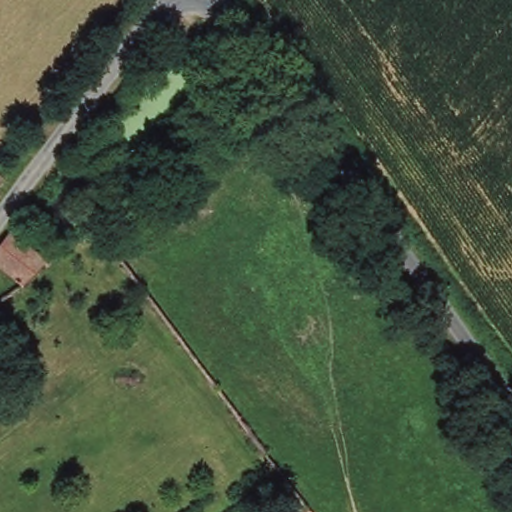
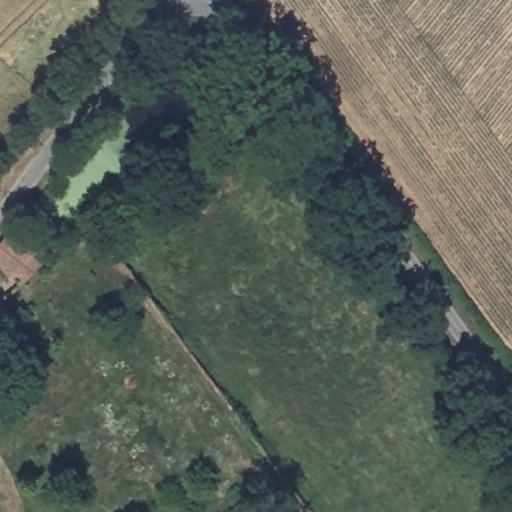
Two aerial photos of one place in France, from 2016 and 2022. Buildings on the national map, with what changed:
unchanged [(0,194),(1,195),(0,196),(0,194)]
unchanged [(22,293),(9,283),(0,276),(0,246),(11,232),(49,261),(22,293)]

